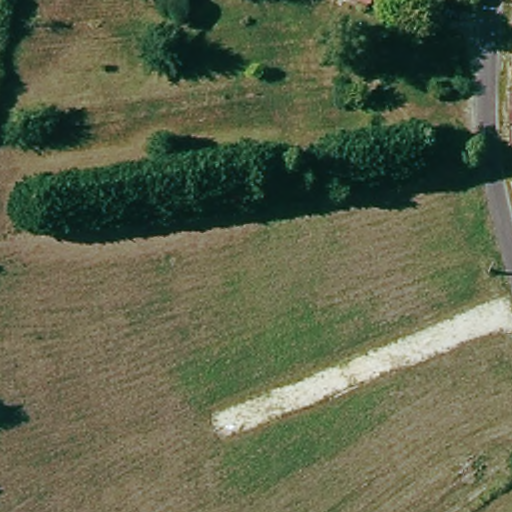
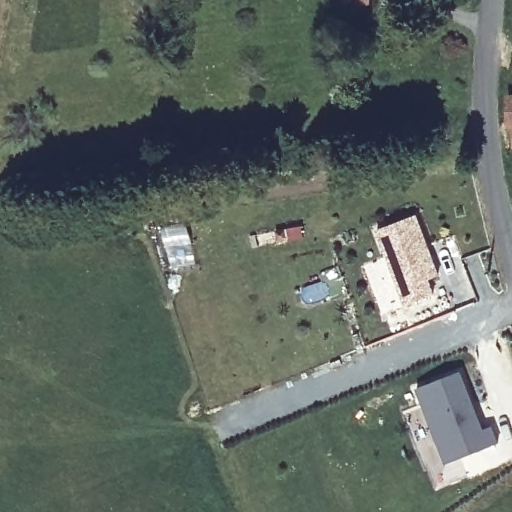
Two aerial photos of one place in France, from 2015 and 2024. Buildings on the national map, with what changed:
unchanged [(510,133),(505,133),(505,103),(509,103),(512,103),(512,133),(510,133)]
new [(411,214),(433,274),(422,278),(428,293),(400,303),(372,228),(411,214)]
new [(497,445),(488,448),(445,464),(416,389),(460,372),(481,431),(490,428),(497,445)]

